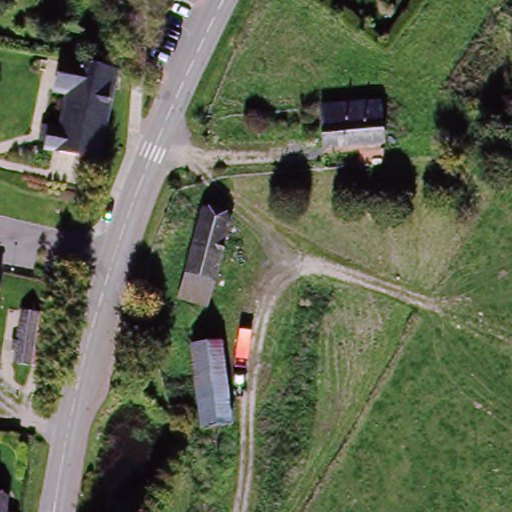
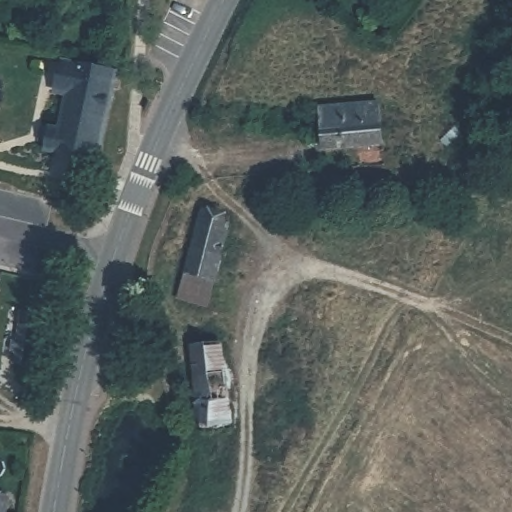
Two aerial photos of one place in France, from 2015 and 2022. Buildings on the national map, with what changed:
unchanged [(101,167),(39,156),(63,52),(120,67),(101,167)]
unchanged [(387,136),(337,142),(331,103),(382,97),(387,136)]
unchanged [(193,207),(225,216),(212,277),(205,312),(172,302),(193,207)]
unchanged [(0,277),(4,277),(0,295),(0,277)]
unchanged [(27,362),(9,357),(19,306),(39,309),(54,312),(42,366),(27,362)]
unchanged [(201,428),(197,343),(219,343),(220,427),(201,428)]
unchanged [(3,512),(0,512),(0,501),(4,502),(3,512)]

